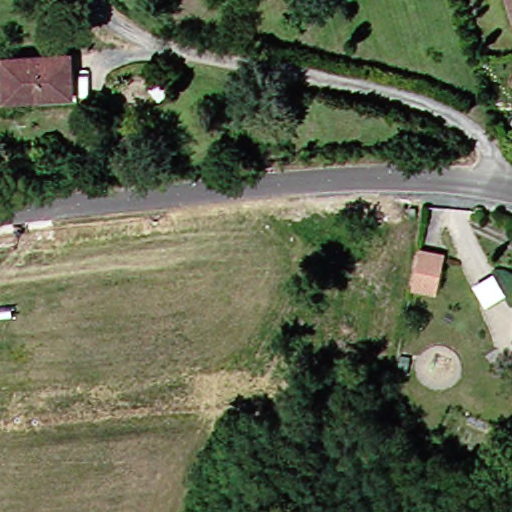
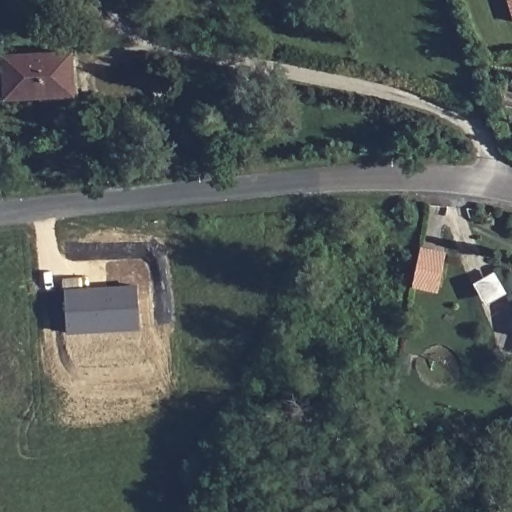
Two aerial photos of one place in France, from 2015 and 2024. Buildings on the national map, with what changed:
unchanged [(18,100),(16,61),(81,57),(84,97),(18,100)]
unchanged [(454,251),(446,287),(422,283),(430,246),(454,251)]
new [(141,330),(68,336),(65,292),(138,287),(141,330)]

